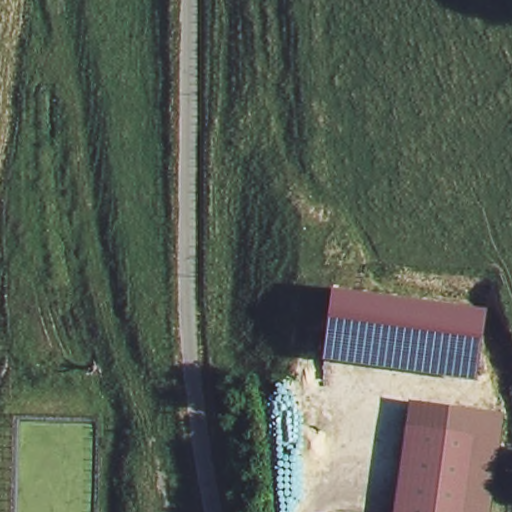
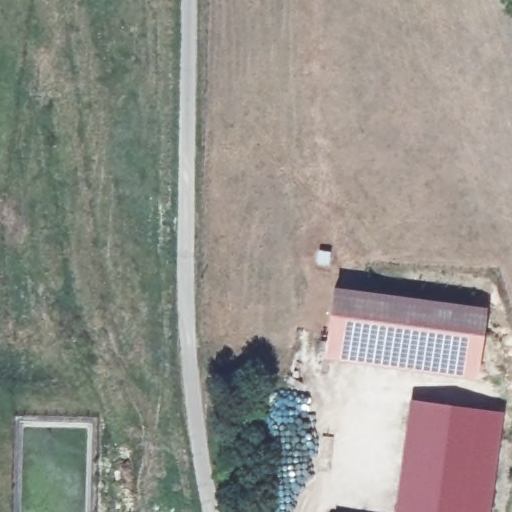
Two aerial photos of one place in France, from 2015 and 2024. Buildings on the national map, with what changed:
unchanged [(487,308),(476,379),(325,357),(333,286),(487,308)]
unchanged [(502,412),(489,512),(393,512),(410,399),(502,412)]

